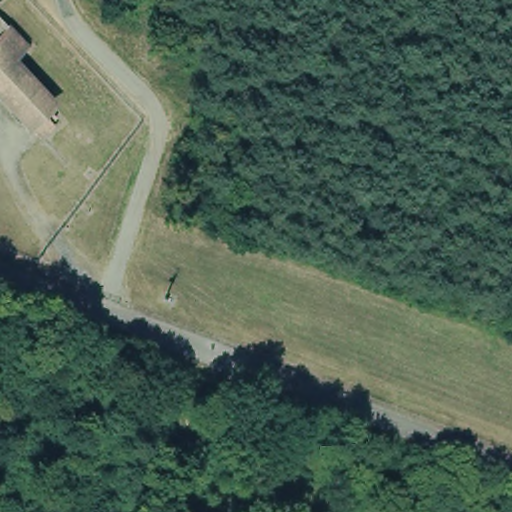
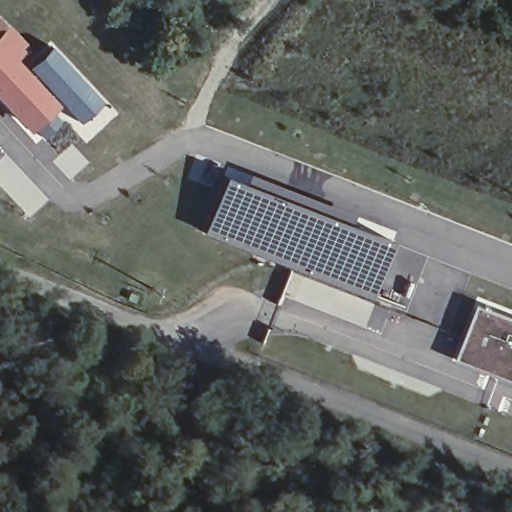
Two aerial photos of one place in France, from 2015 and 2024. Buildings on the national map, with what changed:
unchanged [(2,22),(12,33),(26,49),(10,63),(52,107),(46,112),(41,116),(37,120),(27,128),(0,98),(0,21),(2,22)]
demolished [(69,116),(77,128),(67,135),(59,123),(69,116)]
new [(227,163),(315,200),(313,205),(393,241),(371,299),(305,277),(295,301),(279,295),(289,269),(201,231),(227,163)]
new [(512,313),(512,382),(453,359),(476,299),(512,313)]

